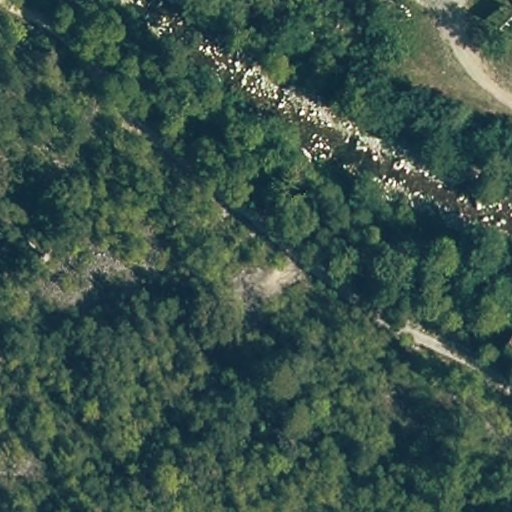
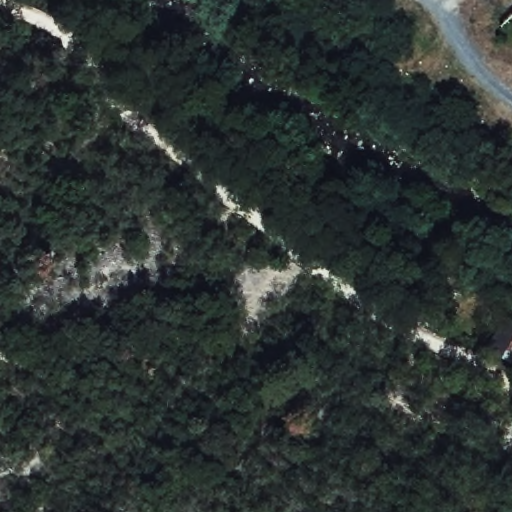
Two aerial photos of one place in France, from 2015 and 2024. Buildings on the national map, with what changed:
unchanged [(504,357),(512,345),(512,363),(504,357)]

